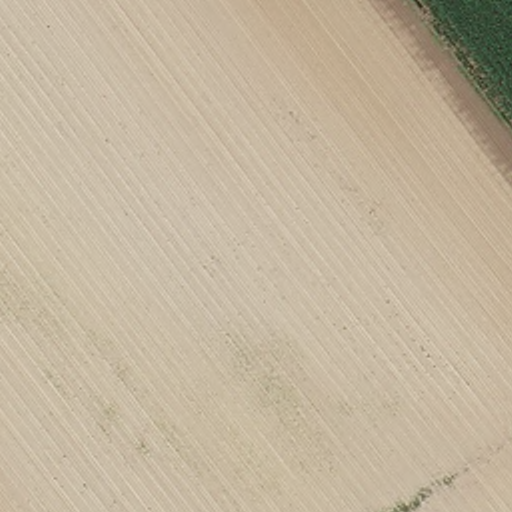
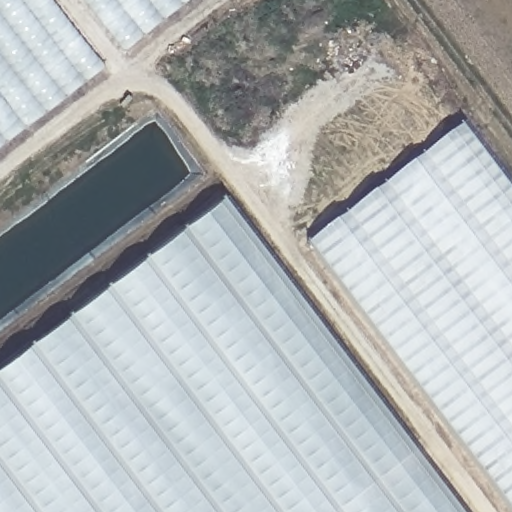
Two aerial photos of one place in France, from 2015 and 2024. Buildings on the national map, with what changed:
new [(50,0),(105,69),(0,149),(0,0),(50,0)]
new [(88,0),(191,0),(127,50),(88,0)]
new [(461,133),(512,201),(512,512),(511,512),(312,250),(461,133)]
new [(222,198),(461,512),(0,512),(0,366),(222,198)]

